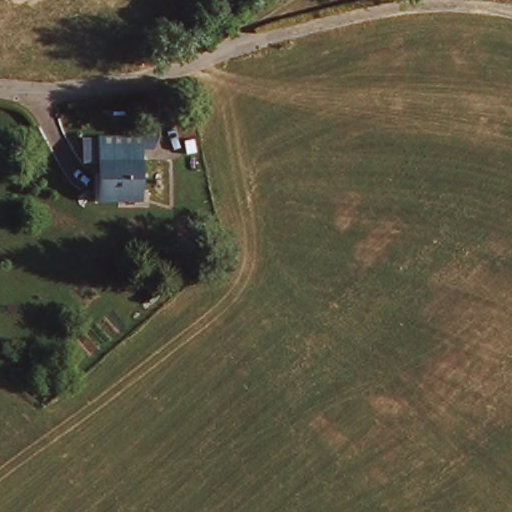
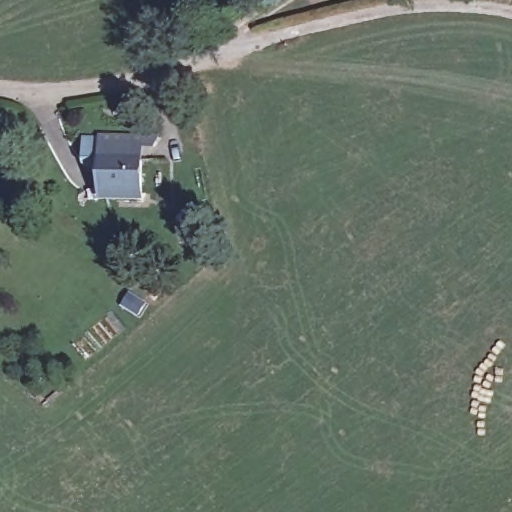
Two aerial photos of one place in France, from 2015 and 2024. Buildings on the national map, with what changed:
unchanged [(147,200),(102,201),(102,196),(99,196),(98,172),(83,162),(82,140),(100,139),(100,136),(144,135),(147,200)]

